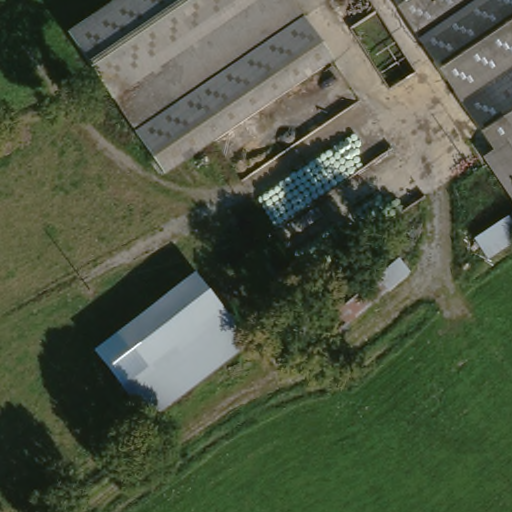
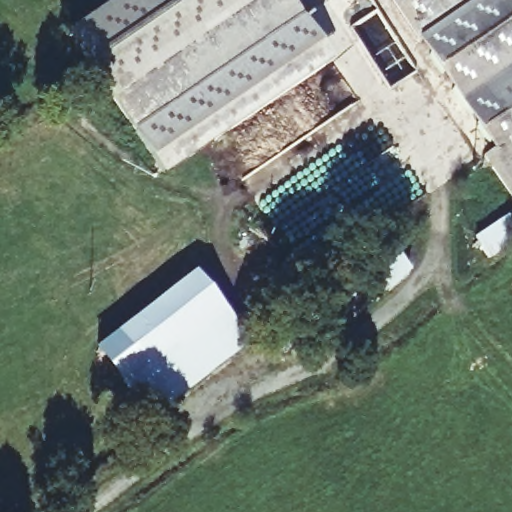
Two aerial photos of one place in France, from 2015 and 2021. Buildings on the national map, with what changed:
unchanged [(68,32),(115,0),(290,0),(302,19),(333,61),(164,169),(112,96),(102,83),(68,32)]
unchanged [(512,0),(512,182),(380,0),(512,0)]
unchanged [(476,247),(507,226),(512,233),(512,247),(486,264),(476,247)]
unchanged [(393,251),(415,278),(336,344),(313,322),(393,251)]
unchanged [(197,280),(246,351),(144,419),(96,348),(197,280)]

